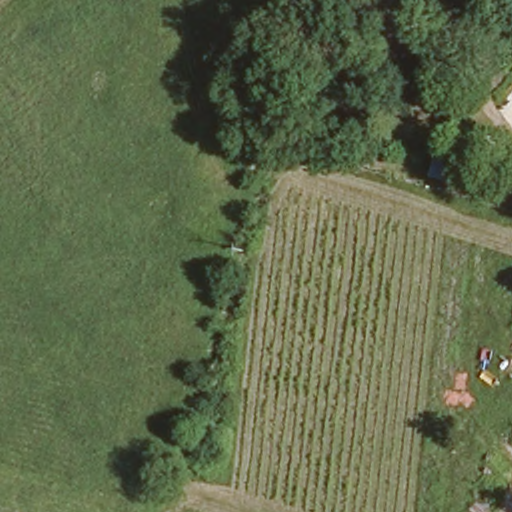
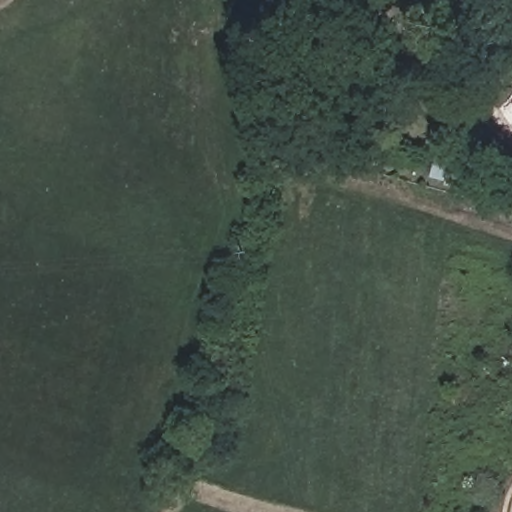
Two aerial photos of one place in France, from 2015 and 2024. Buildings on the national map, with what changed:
[]

